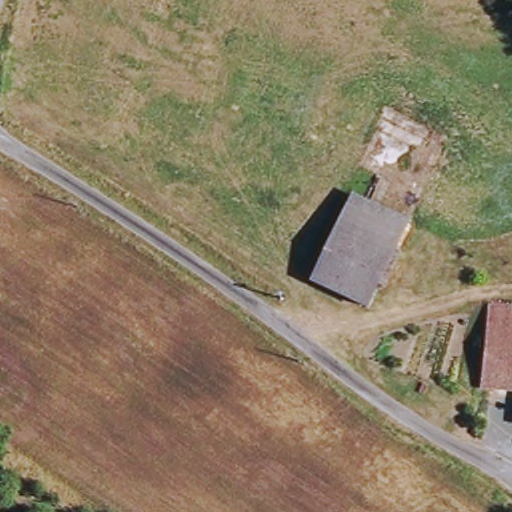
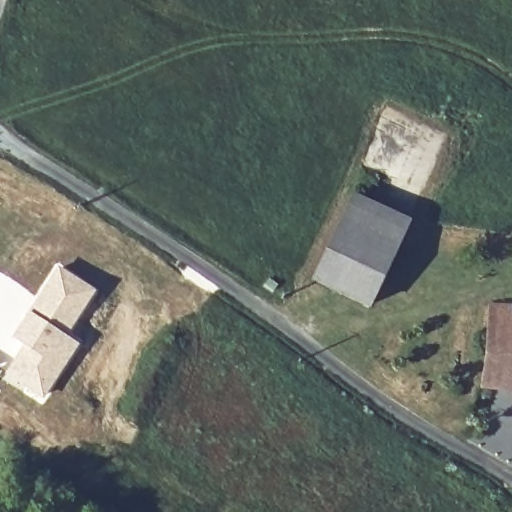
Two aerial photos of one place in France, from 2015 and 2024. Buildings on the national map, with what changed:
unchanged [(410,230),(365,312),(305,282),(315,262),(351,199),(410,230)]
new [(26,350),(19,345),(17,339),(59,273),(93,294),(65,338),(78,345),(45,399),(27,388),(24,395),(0,380),(0,370),(10,376),(26,350)]
unchanged [(481,388),(487,310),(512,311),(512,391),(481,388)]

